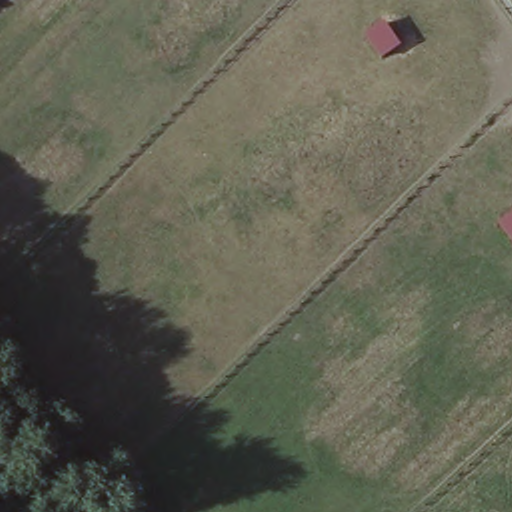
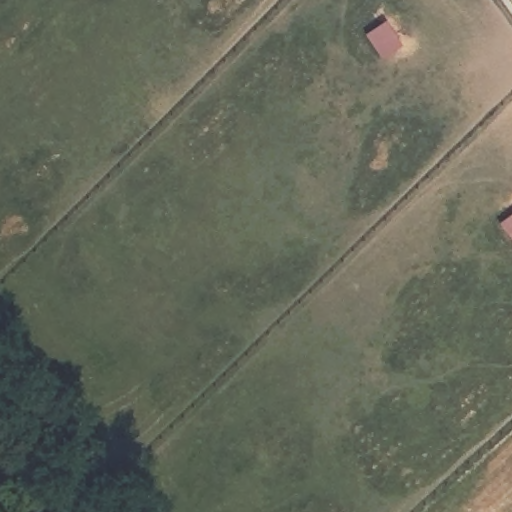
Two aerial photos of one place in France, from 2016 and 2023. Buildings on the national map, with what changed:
unchanged [(363,34),(386,20),(401,45),(380,60),(363,34)]
unchanged [(512,244),(498,224),(512,215),(512,244)]

